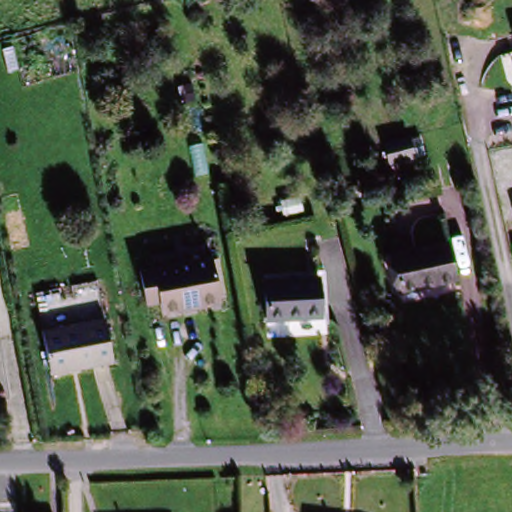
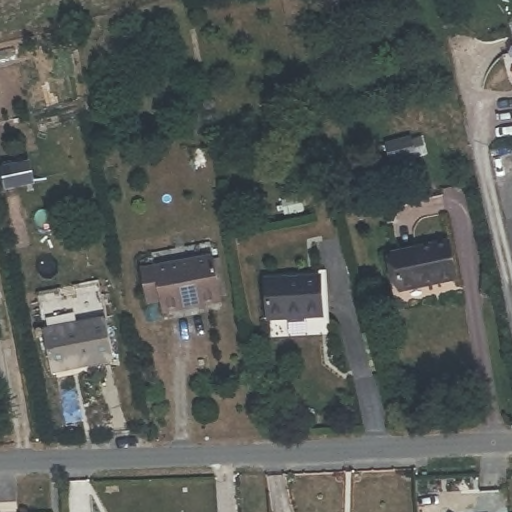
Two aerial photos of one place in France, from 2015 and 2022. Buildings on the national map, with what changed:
unchanged [(417,156),(388,163),(383,144),(412,137),(417,156)]
unchanged [(450,242),(458,281),(404,291),(396,252),(450,242)]
unchanged [(165,315),(163,302),(150,305),(144,270),(216,258),(225,305),(165,315)]
unchanged [(322,314),(271,317),(268,278),(320,275),(322,314)]
unchanged [(111,325),(119,364),(55,376),(49,336),(111,325)]

